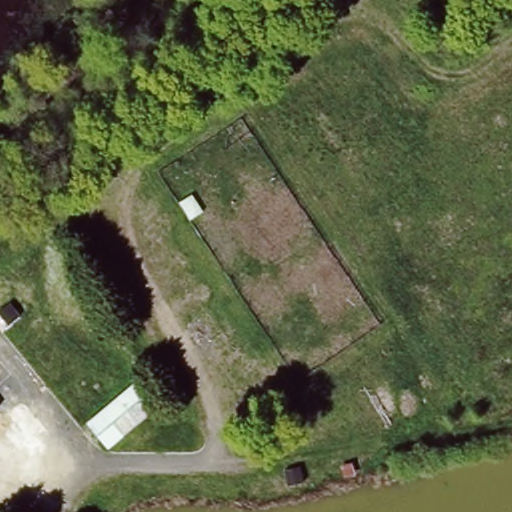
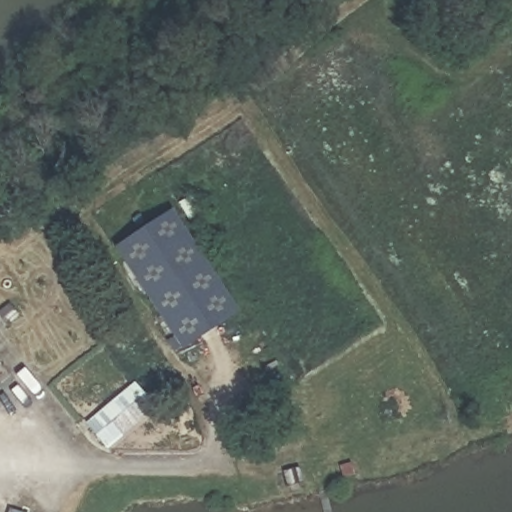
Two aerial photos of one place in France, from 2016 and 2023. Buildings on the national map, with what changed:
new [(111,255),(168,216),(236,316),(179,354),(111,255)]
unchanged [(159,407),(106,451),(86,425),(138,381),(159,407)]

